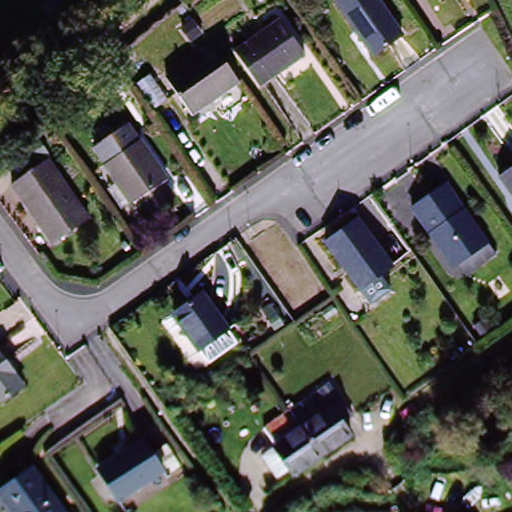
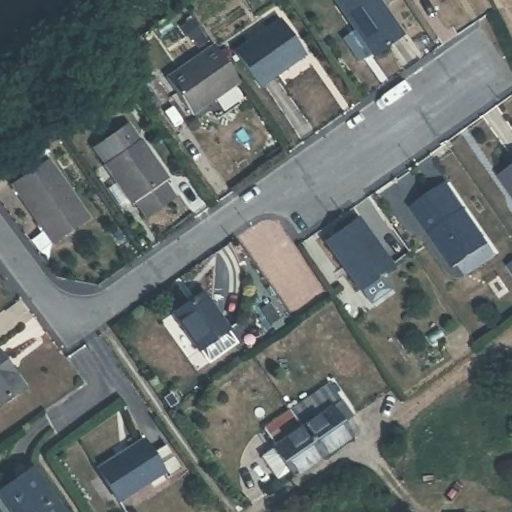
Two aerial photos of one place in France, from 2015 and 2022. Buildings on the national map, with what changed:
unchanged [(0,45),(25,25),(56,0),(104,0),(44,48),(0,83),(0,45)]
unchanged [(333,0),(376,0),(399,34),(369,55),(332,1),(333,0)]
unchanged [(275,19),(300,57),(256,88),(230,50),(275,19)]
unchanged [(244,81),(192,116),(168,80),(220,44),(244,81)]
unchanged [(149,70),(167,95),(156,103),(139,78),(149,70)]
unchanged [(170,182),(167,185),(177,199),(147,219),(138,205),(133,208),(133,207),(122,214),(109,196),(119,189),(105,167),(109,164),(98,147),(128,127),(139,143),(142,141),(170,182)]
unchanged [(512,164),(512,191),(499,173),(512,164)]
unchanged [(48,243),(9,187),(39,166),(77,221),(48,243)]
unchanged [(451,185),(468,210),(434,233),(418,208),(451,185)]
unchanged [(468,210),(499,256),(466,279),(434,233),(468,210)]
unchanged [(356,218),(388,263),(356,285),(324,240),(356,218)]
unchanged [(209,351),(201,339),(194,344),(169,308),(198,289),(222,326),(220,327),(228,339),(209,351)]
unchanged [(0,404),(0,353),(24,388),(0,404)]
unchanged [(329,381),(354,419),(339,428),(348,441),(320,459),(288,408),(329,381)]
unchanged [(255,450),(269,441),(260,426),(288,408),(320,459),(293,477),(285,465),(271,475),(255,450)]
unchanged [(93,472),(141,439),(151,455),(164,446),(180,470),(168,478),(163,471),(114,503),(93,472)]
unchanged [(0,491),(31,469),(61,512),(10,512),(0,497),(0,491)]

